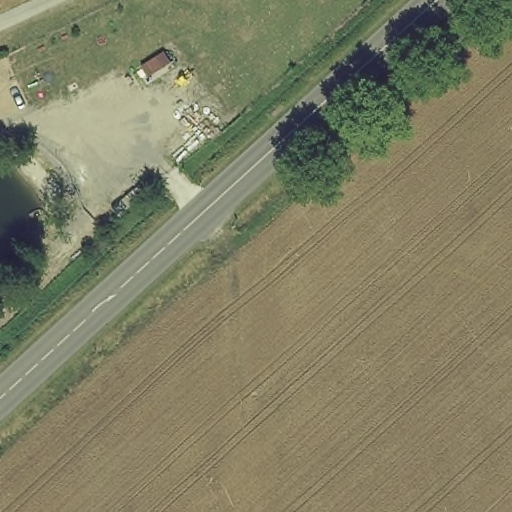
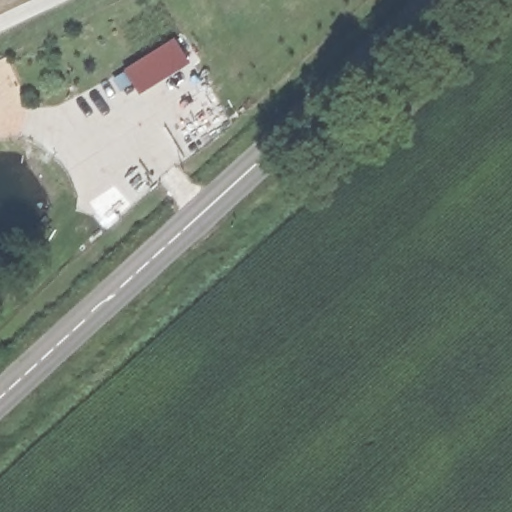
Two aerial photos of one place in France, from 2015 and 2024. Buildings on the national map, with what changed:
new [(173,37),(191,63),(139,95),(132,80),(119,88),(112,75),(173,37)]

